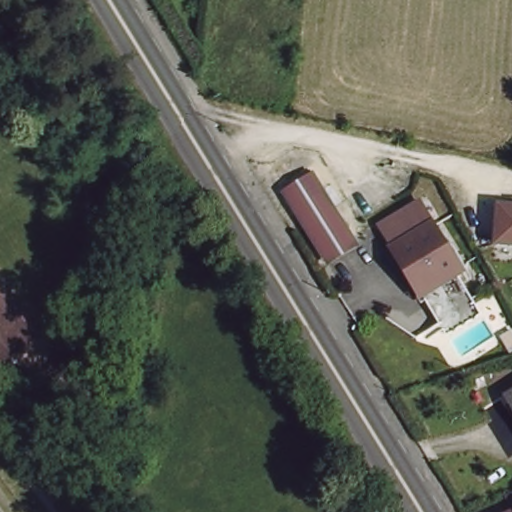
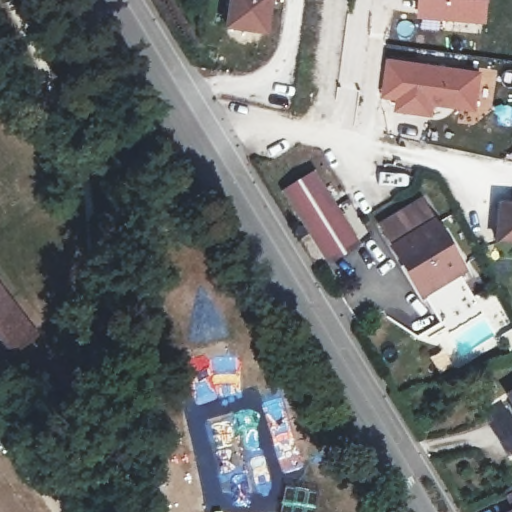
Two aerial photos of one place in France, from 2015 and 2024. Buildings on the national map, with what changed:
unchanged [(264,32),(227,26),(230,0),(269,0),(264,32)]
new [(486,24),(418,16),(419,0),(488,0),(486,24)]
new [(476,112),(433,105),(431,117),(395,110),(396,101),(381,97),(387,56),(481,70),(476,112)]
unchanged [(328,262),(282,189),(312,171),(322,186),(333,205),(358,244),(328,262)]
unchanged [(463,270),(439,285),(442,290),(426,300),(381,225),(421,200),(463,270)]
unchanged [(499,204),(512,205),(512,243),(497,242),(499,204)]
new [(445,332),(440,324),(429,305),(464,284),(475,303),(480,311),(445,332)]
unchanged [(8,304),(7,305),(13,312),(14,312),(39,345),(3,373),(0,375),(0,294),(8,304)]
unchanged [(512,493),(512,510),(506,496),(512,493)]

